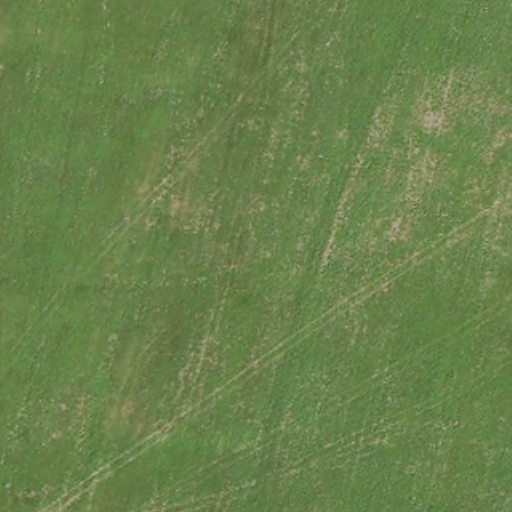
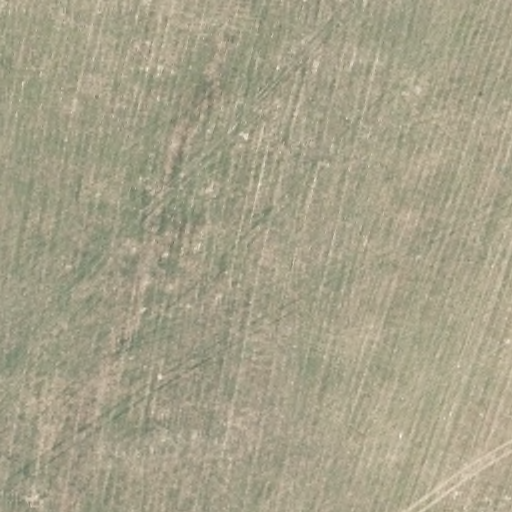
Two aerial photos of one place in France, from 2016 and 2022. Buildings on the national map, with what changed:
[]

